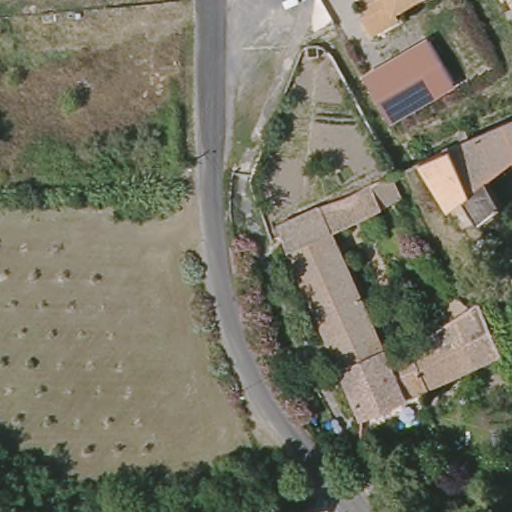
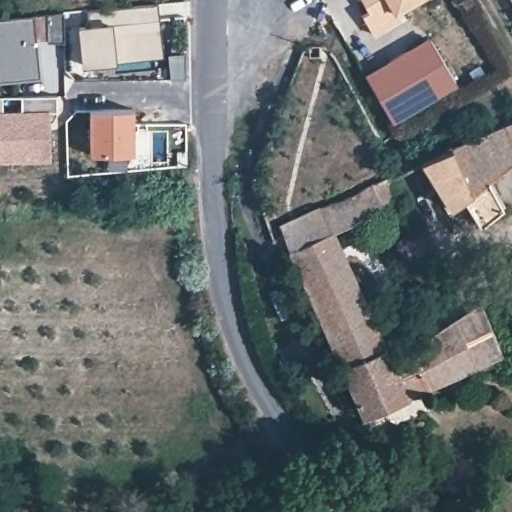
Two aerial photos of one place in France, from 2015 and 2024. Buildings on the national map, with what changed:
unchanged [(402,11),(406,19),(379,35),(367,15),(374,11),(367,0),(421,0),(402,11)]
new [(90,34),(88,18),(149,12),(151,28),(161,27),(162,37),(152,38),(153,54),(110,59),(111,70),(84,72),(80,34),(90,34)]
new [(41,75),(0,79),(0,18),(35,15),(41,75)]
new [(48,17),(65,15),(65,43),(49,43),(48,17)]
unchanged [(456,83),(391,121),(364,72),(427,36),(456,83)]
new [(2,111),(22,111),(22,95),(57,95),(57,111),(50,111),(50,160),(0,161),(0,96),(2,96),(2,111)]
new [(137,112),(138,157),(94,158),(93,113),(137,112)]
unchanged [(455,203),(426,156),(512,117),(512,159),(493,174),(507,200),(484,218),(467,223),(455,203)]
unchanged [(396,176),(409,199),(399,203),(353,224),(338,231),(326,205),(396,176)]
unchanged [(285,223),(326,205),(338,231),(398,360),(414,397),(367,418),(295,250),(285,223)]
unchanged [(486,302),(508,354),(476,369),(414,397),(398,360),(486,302)]
unchanged [(305,501),(303,503),(301,505),(298,505),(295,505),(293,504),(291,502),(289,499),(289,496),(289,494),(291,491),(293,489),(295,488),(298,487),(301,488),(303,489),(305,491),(306,494),(307,496),(306,499),(305,501)]

